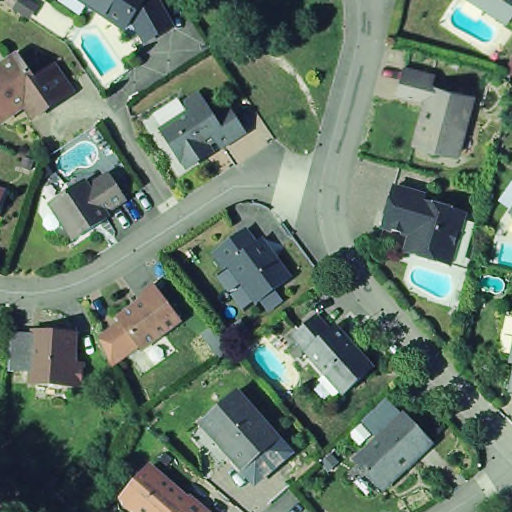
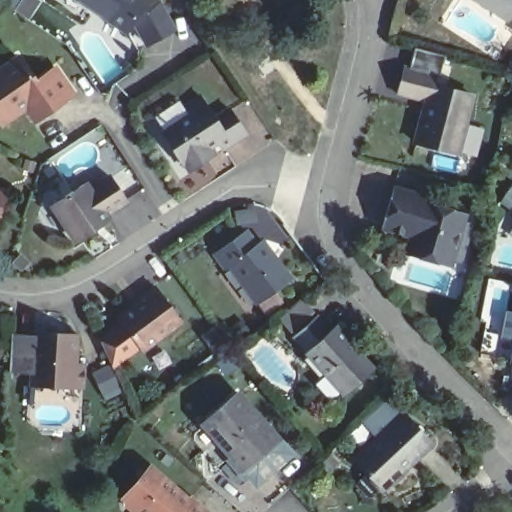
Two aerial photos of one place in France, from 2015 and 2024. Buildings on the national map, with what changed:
unchanged [(27,0),(34,4),(26,17),(14,10),(13,9),(18,0),(27,0)]
unchanged [(146,37),(135,16),(131,15),(124,24),(89,0),(159,0),(172,22),(146,37)]
unchanged [(492,0),(512,0),(512,6),(509,11),(492,0)]
unchanged [(22,61),(31,55),(32,57),(45,74),(47,72),(50,78),(70,65),(87,90),(52,115),(44,102),(17,120),(11,112),(3,117),(0,117),(0,57),(14,49),(22,61)]
unchanged [(510,52),(512,53),(512,68),(506,67),(510,52)]
unchanged [(431,72),(429,80),(468,91),(452,151),(411,140),(422,97),(391,90),(397,64),(431,72)]
unchanged [(246,132),(221,147),(217,141),(203,150),(205,154),(186,166),(184,161),(181,162),(162,131),(190,112),(185,104),(201,94),(215,116),(230,107),(246,132)]
unchanged [(32,165),(27,174),(18,170),(22,160),(32,165)]
unchanged [(77,176),(81,184),(104,169),(117,191),(96,204),(99,211),(67,231),(44,197),(77,176)]
unchanged [(424,195),(422,199),(462,212),(449,261),(406,249),(411,232),(382,223),(393,186),(424,195)]
unchanged [(0,200),(0,195),(2,196),(0,200)]
unchanged [(510,207),(512,203),(512,208),(510,207)]
unchanged [(284,283),(251,307),(225,271),(221,273),(210,257),(241,234),(251,249),(256,245),(284,283)]
unchanged [(99,333),(120,315),(117,311),(142,294),(139,290),(152,280),(179,315),(140,343),(137,340),(111,360),(99,333)]
unchanged [(510,360),(511,355),(496,352),(506,308),(512,309),(512,360),(510,360)]
unchanged [(372,366),(344,392),(306,348),(307,347),(294,332),(316,313),(329,328),(335,323),(372,366)]
unchanged [(78,329),(77,358),(85,358),(84,382),(54,379),(54,373),(32,372),(33,367),(9,364),(11,327),(35,329),(36,327),(78,329)]
unchanged [(510,390),(512,379),(512,390),(510,390)]
unchanged [(242,467),(232,455),(201,418),(237,388),(267,423),(278,437),(242,467)]
unchanged [(402,405),(427,432),(401,455),(402,457),(380,478),(354,449),(402,405)]
unchanged [(146,508),(145,510),(137,511),(129,503),(129,496),(153,467),(165,477),(166,476),(192,500),(194,497),(211,512),(150,512),(146,508)]

